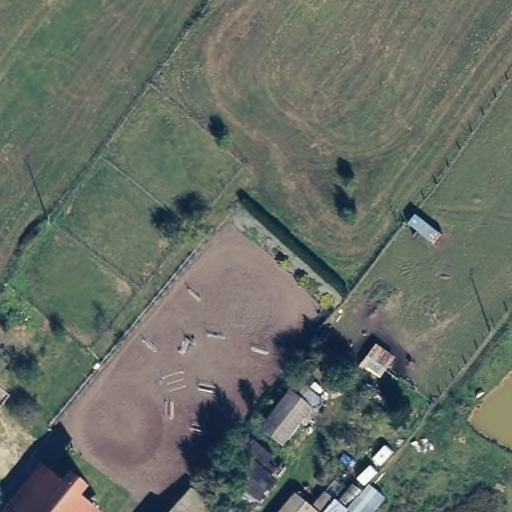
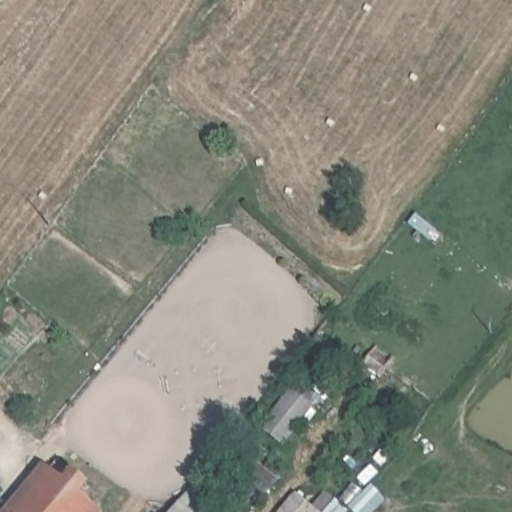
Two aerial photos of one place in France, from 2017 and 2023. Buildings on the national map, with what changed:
unchanged [(290,392),(308,407),(279,445),(261,429),(290,392)]
unchanged [(253,431),(270,445),(263,455),(245,440),(253,431)]
unchanged [(94,512),(23,512),(51,476),(94,512)]
unchanged [(189,487),(221,512),(168,512),(189,487)]
unchanged [(296,495),(310,506),(325,490),(336,497),(324,512),(279,512),(296,495)]

